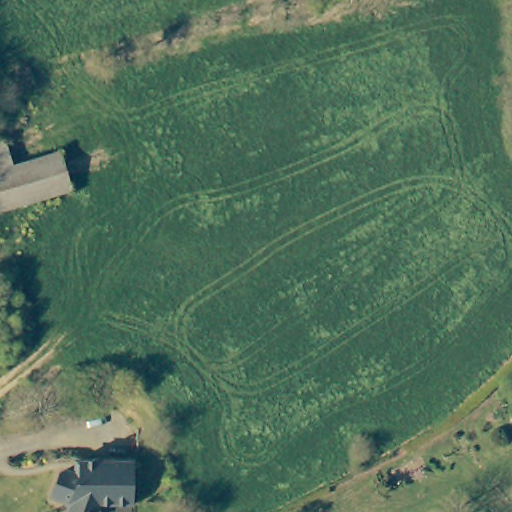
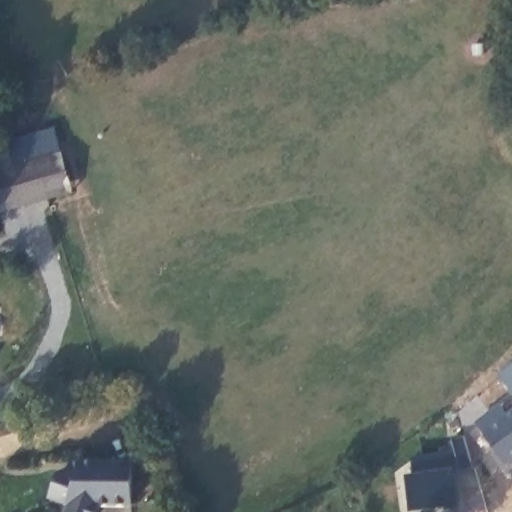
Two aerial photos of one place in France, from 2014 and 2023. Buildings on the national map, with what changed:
unchanged [(60,149),(73,186),(0,209),(0,141),(8,165),(60,149)]
new [(508,464),(476,420),(500,403),(507,414),(512,410),(512,461),(508,464)]
new [(407,475),(414,473),(411,457),(456,450),(454,439),(466,436),(474,466),(456,473),(461,505),(412,511),(407,475)]
unchanged [(136,495),(105,503),(102,512),(73,512),(74,510),(55,505),(63,480),(69,477),(75,477),(79,475),(76,465),(126,453),(136,495)]

